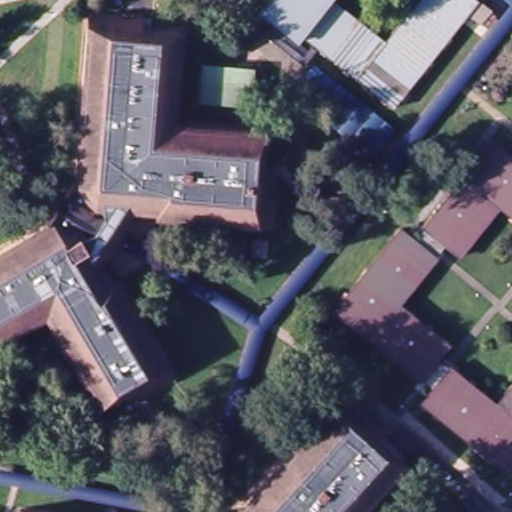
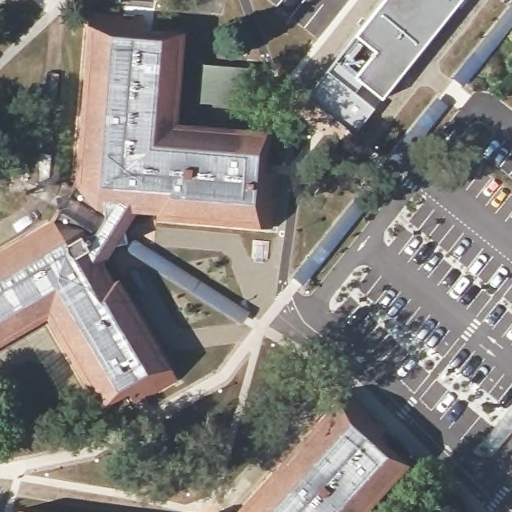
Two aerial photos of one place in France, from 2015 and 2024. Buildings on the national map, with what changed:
unchanged [(473,18),(393,115),(302,40),(298,43),(262,13),(273,0),(334,0),(333,1),(387,45),(424,0),(475,0),(493,14),(483,27),(473,18)]
unchanged [(503,0),(512,0),(512,7),(503,0)]
unchanged [(277,331),(265,323),(512,15),(512,39),(277,331)]
unchanged [(61,238),(59,234),(60,232),(75,207),(85,190),(90,190),(98,21),(122,22),(127,22),(133,23),(138,23),(148,23),(147,39),(182,41),(178,134),(268,139),(267,177),(283,178),(283,188),(289,188),(288,203),(282,203),(281,226),(172,218),(172,222),(145,216),(133,236),(138,238),(136,242),(130,251),(129,254),(128,256),(123,253),(111,274),(107,279),(121,303),(126,300),(180,392),(179,393),(145,413),(140,403),(115,417),(60,324),(0,358),(0,274),(18,263),(61,238)]
unchanged [(499,90),(490,83),(512,55),(512,74),(499,90)]
unchanged [(236,77),(234,111),(194,109),(196,75),(236,77)]
unchanged [(375,157),(330,121),(352,93),(397,129),(375,157)]
demolished [(397,309),(448,350),(439,361),(438,361),(425,378),(423,381),(420,384),(334,314),(402,230),(417,243),(427,231),(423,227),(494,140),(512,155),(512,217),(498,205),(458,256),(444,245),(434,257),(437,260),(397,309)]
unchanged [(270,240),(269,257),(253,257),(254,240),(270,240)]
unchanged [(270,342),(257,334),(151,268),(129,254),(130,251),(136,242),(265,323),(277,331),(270,342)]
unchanged [(255,390),(239,441),(217,512),(132,512),(0,489),(0,479),(1,474),(201,511),(226,431),(242,380),(252,350),(257,334),(270,342),(264,360),(255,390)]
demolished [(454,368),(501,407),(512,393),(512,464),(507,470),(425,404),(436,391),(441,384),(451,372),(454,368)]
unchanged [(281,475),(314,439),(317,436),(335,417),(354,396),(390,430),(377,443),(405,468),(402,471),(382,493),(365,512),(246,512),(281,475)]
unchanged [(55,441),(94,425),(97,433),(92,446),(61,457),(55,441)]

